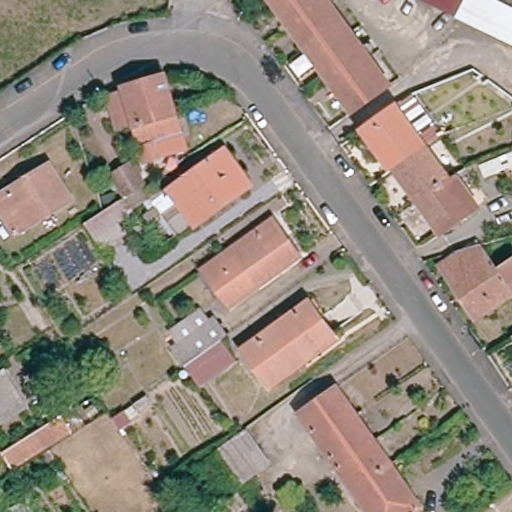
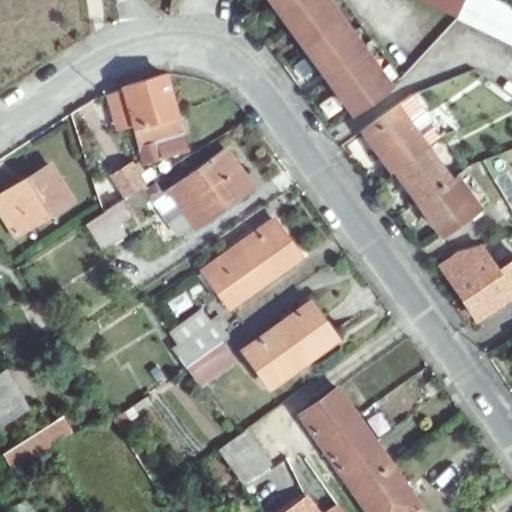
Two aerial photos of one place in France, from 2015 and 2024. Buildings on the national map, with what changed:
unchanged [(276,0),(321,0),(388,93),(359,116),(276,0)]
unchanged [(388,93),(321,0),(330,0),(395,89),(388,93)]
unchanged [(512,6),(512,41),(485,28),(429,0),(501,0),(512,6)]
unchanged [(123,91),(166,77),(178,117),(136,133),(124,94),(123,91)]
unchanged [(400,111),(478,215),(448,237),(430,211),(412,222),(402,207),(417,196),(371,132),(400,111)]
unchanged [(178,117),(188,152),(145,165),(136,133),(178,117)]
unchanged [(231,200),(190,228),(166,192),(217,154),(240,185),(244,190),(231,200)]
unchanged [(69,197),(18,232),(0,204),(0,197),(25,181),(49,165),(69,197)]
unchanged [(114,179),(132,166),(135,170),(139,167),(142,172),(139,174),(147,189),(127,200),(114,179)]
unchanged [(106,214),(122,204),(131,219),(97,242),(86,227),(106,214)]
unchanged [(300,255),(230,306),(202,270),(225,252),(257,230),(275,217),(300,255)]
unchanged [(492,260),(496,267),(511,257),(512,257),(512,289),(471,317),(436,265),(456,252),(455,250),(474,244),(487,262),(492,260)]
unchanged [(303,358),(271,382),(246,348),(305,304),(310,301),(320,315),(331,331),(335,336),(303,358)]
unchanged [(200,386),(185,366),(172,348),(180,343),(171,332),(201,311),(210,322),(215,317),(228,335),(216,344),(231,362),(200,386)]
unchanged [(25,406),(0,420),(0,374),(4,372),(25,406)]
unchanged [(422,511),(420,512),(368,512),(300,417),(338,391),(422,511)]
unchanged [(268,467),(244,487),(219,452),(245,434),(268,467)]
new [(321,512),(337,501),(345,512),(278,512),(307,492),(321,512)]

